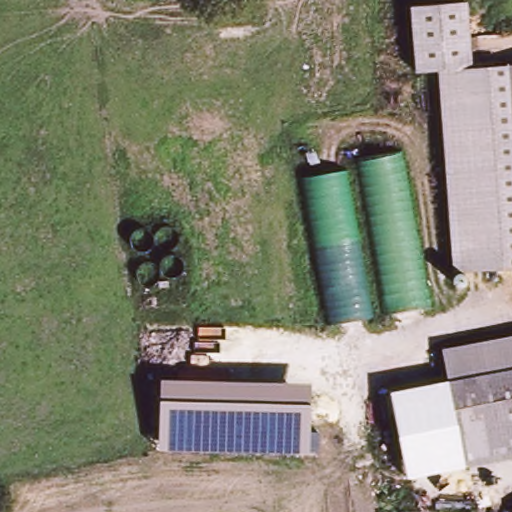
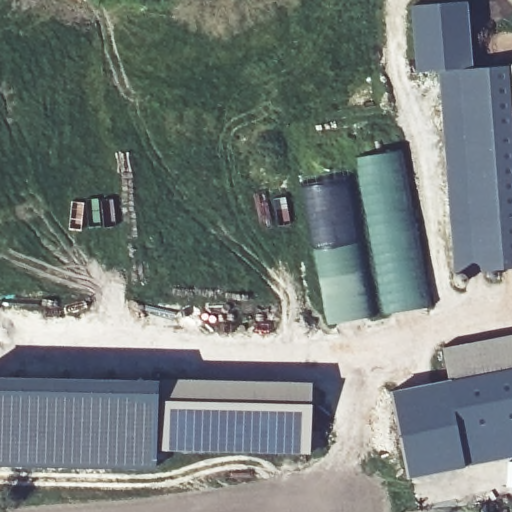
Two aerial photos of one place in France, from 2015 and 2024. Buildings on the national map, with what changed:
unchanged [(414,0),(470,0),(476,64),(441,67),(419,68),(414,0)]
unchanged [(512,62),(512,264),(453,265),(441,67),(476,64),(512,62)]
unchanged [(434,307),(383,315),(356,156),(406,147),(434,307)]
unchanged [(373,315),(332,322),(305,177),(346,170),(373,315)]
unchanged [(512,364),(455,376),(450,346),(512,335),(512,364)]
unchanged [(512,364),(512,403),(462,412),(455,376),(512,364)]
new [(160,378),(157,450),(153,467),(0,466),(0,374),(160,378)]
unchanged [(311,380),(309,455),(158,450),(160,378),(311,380)]
unchanged [(465,465),(408,477),(391,391),(448,380),(465,465)]
unchanged [(462,412),(512,403),(512,455),(471,462),(462,412)]

